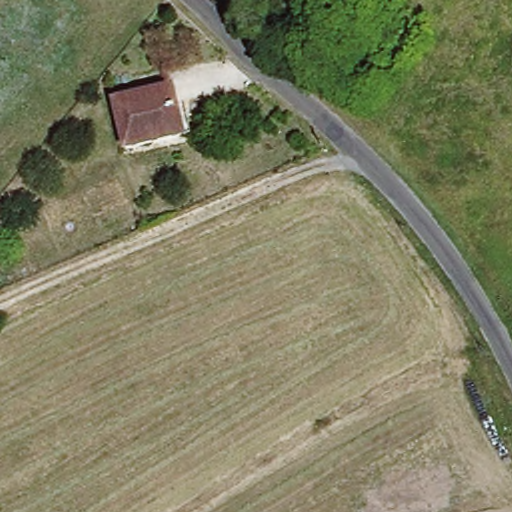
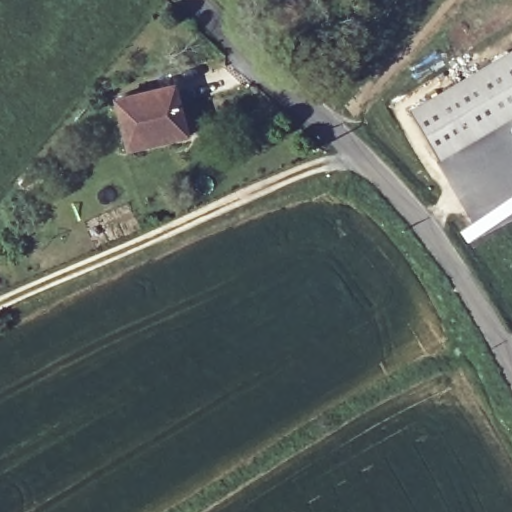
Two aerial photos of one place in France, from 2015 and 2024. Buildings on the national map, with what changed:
new [(512,116),(435,162),(407,113),(512,52),(512,116)]
unchanged [(110,104),(168,87),(173,105),(182,102),(190,131),(122,150),(110,104)]

